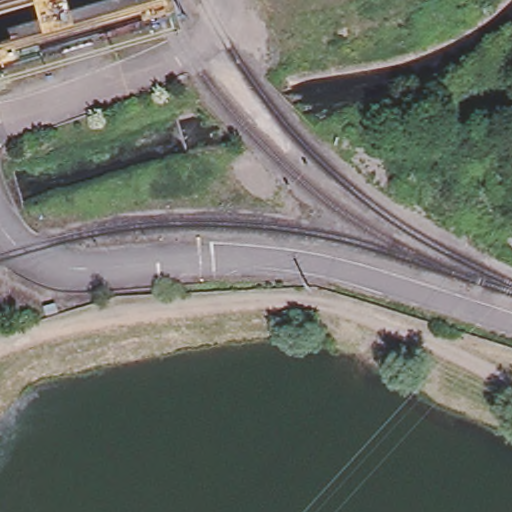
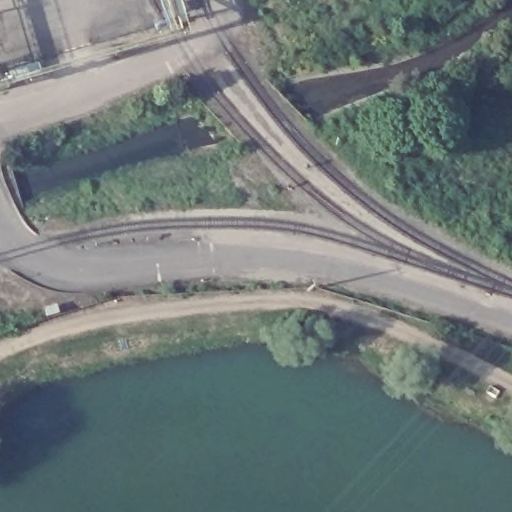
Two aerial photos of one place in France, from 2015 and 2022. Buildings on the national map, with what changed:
[]

